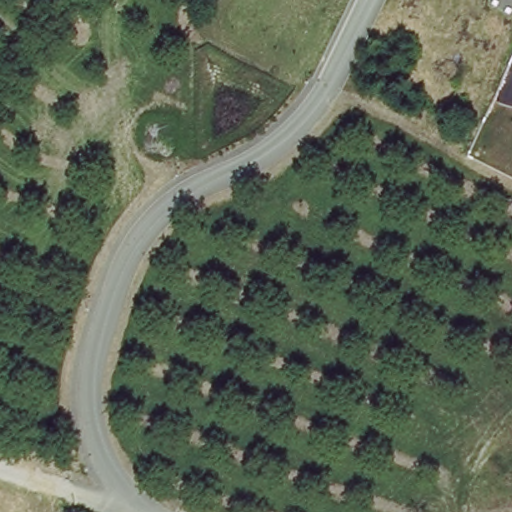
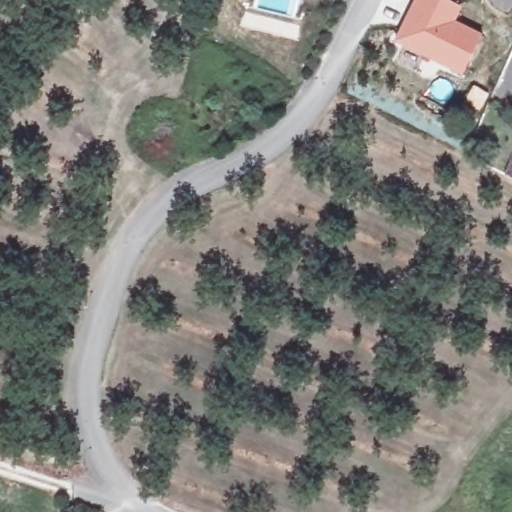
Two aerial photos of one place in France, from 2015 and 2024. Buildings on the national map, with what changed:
new [(478,12),(462,79),(406,55),(418,0),(465,0),(478,12)]

